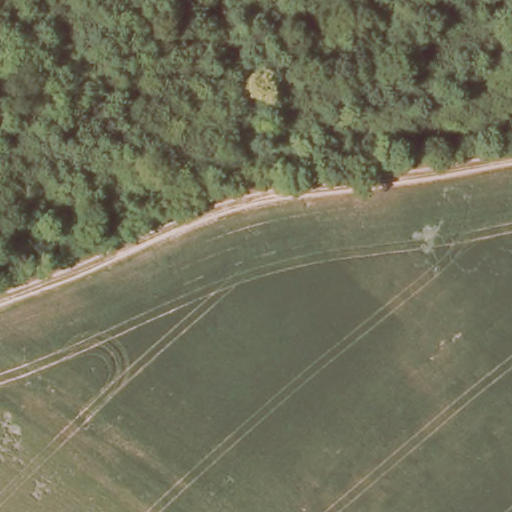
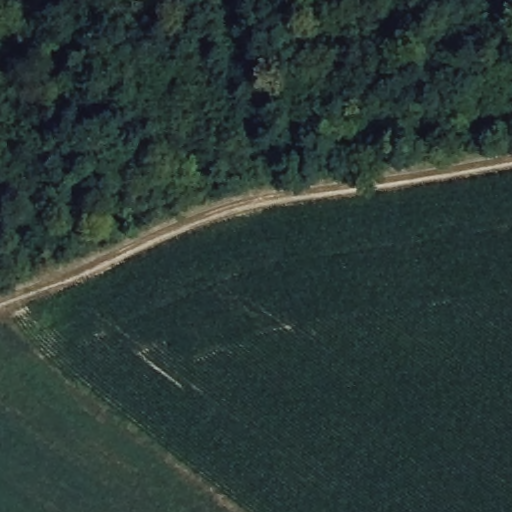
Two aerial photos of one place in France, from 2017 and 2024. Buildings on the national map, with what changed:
[]

